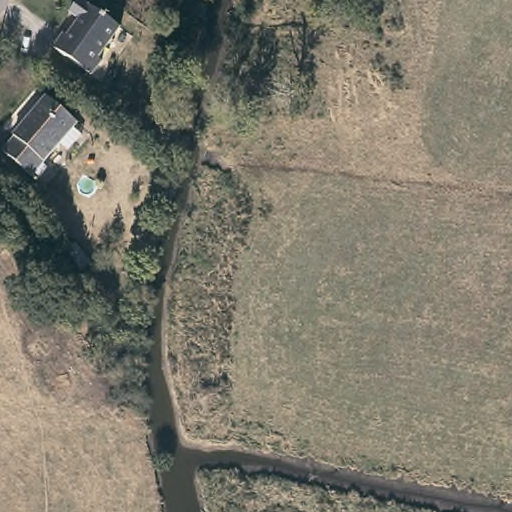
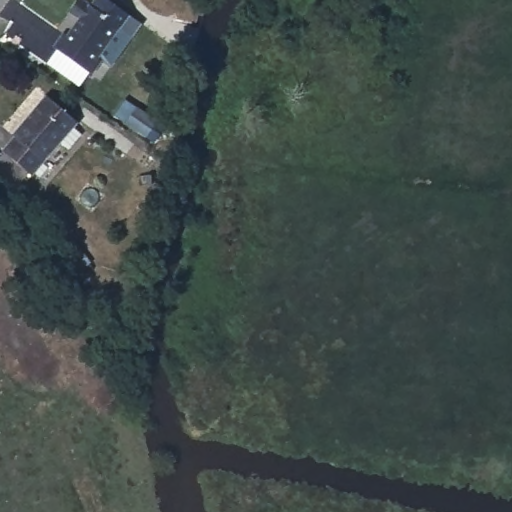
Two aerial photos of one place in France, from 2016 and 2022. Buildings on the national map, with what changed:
unchanged [(97,56),(101,60),(91,74),(52,46),(62,32),(65,34),(77,18),(66,10),(73,0),(83,0),(119,26),(97,56)]
unchanged [(69,125),(76,132),(62,147),(54,141),(38,162),(42,167),(35,175),(30,171),(27,174),(0,149),(0,147),(11,134),(9,132),(42,94),(73,120),(69,125)]

